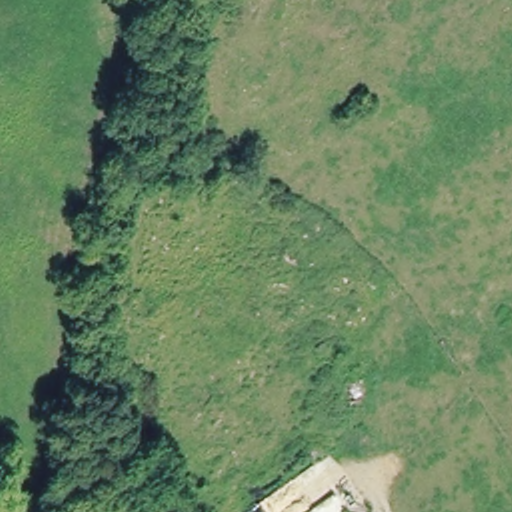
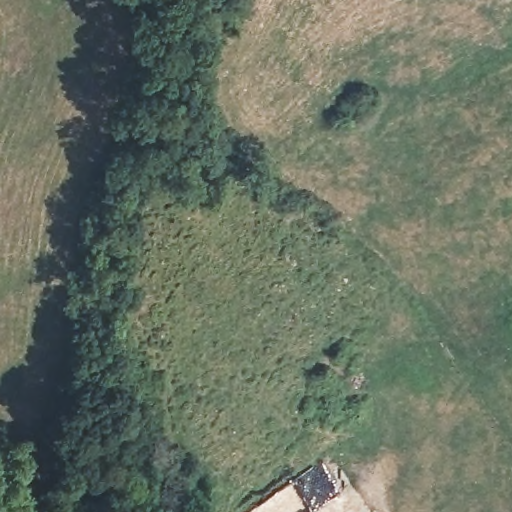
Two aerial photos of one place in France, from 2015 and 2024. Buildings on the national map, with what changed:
[]

